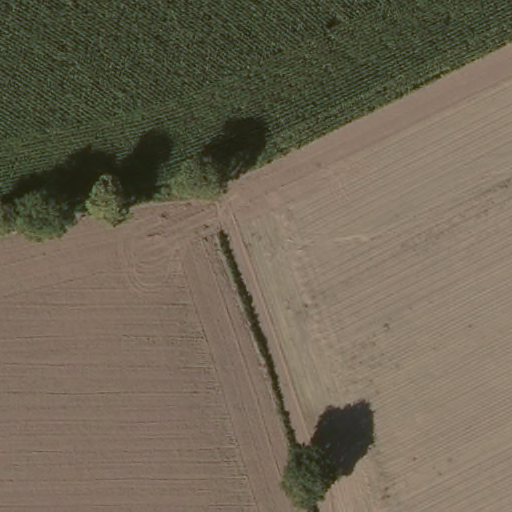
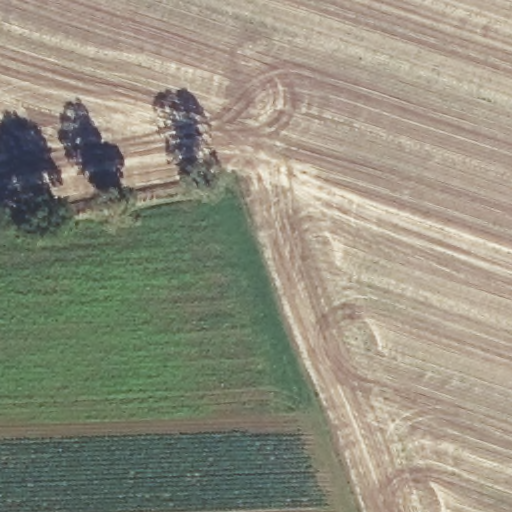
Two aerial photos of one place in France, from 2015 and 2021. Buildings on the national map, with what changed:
[]

